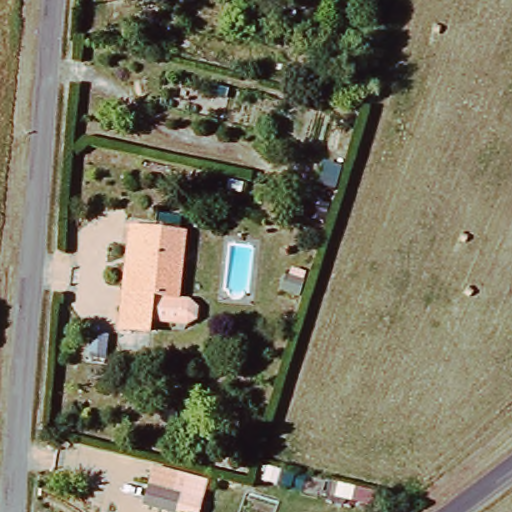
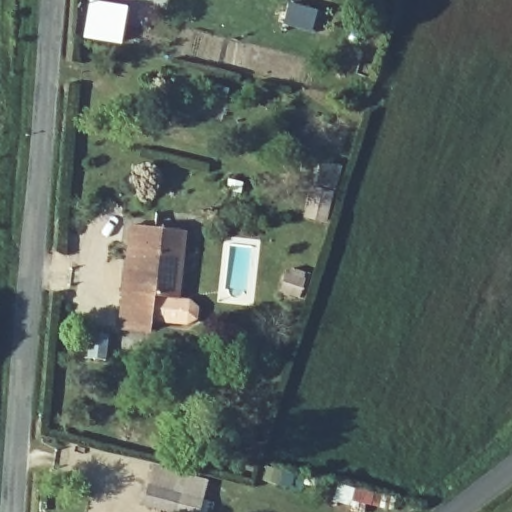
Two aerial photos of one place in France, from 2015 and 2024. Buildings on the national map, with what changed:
new [(87,0),(90,0),(127,5),(120,45),(81,38),(87,0)]
unchanged [(175,230),(168,298),(180,299),(189,308),(187,319),(177,324),(142,321),(142,331),(112,328),(113,318),(121,225),(175,230)]
unchanged [(175,511),(145,504),(150,484),(180,491),(175,511)]
unchanged [(180,512),(178,511),(182,492),(202,496),(199,512),(180,512)]

